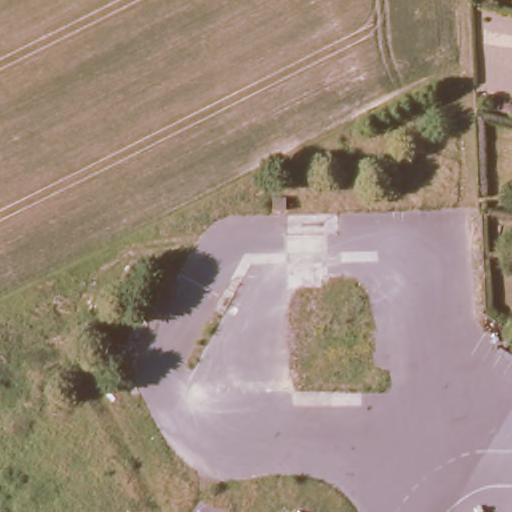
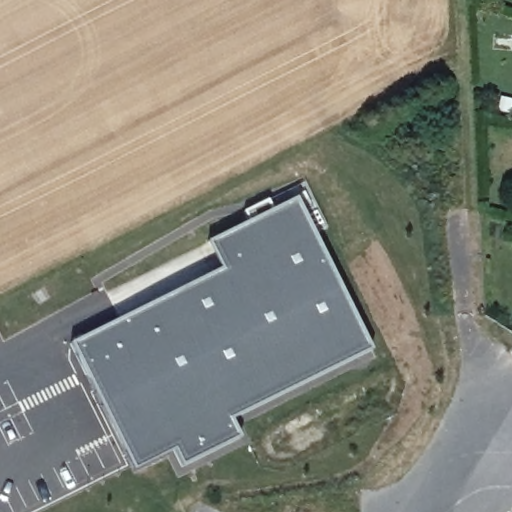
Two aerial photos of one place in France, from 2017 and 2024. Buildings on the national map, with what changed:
new [(92,385),(85,371),(70,340),(233,260),(220,233),(250,218),(245,207),(270,195),(275,206),(298,194),(333,266),(373,346),(232,417),(240,435),(182,464),(174,448),(135,467),(92,385)]
new [(220,233),(233,260),(221,266),(208,239),(220,233)]

